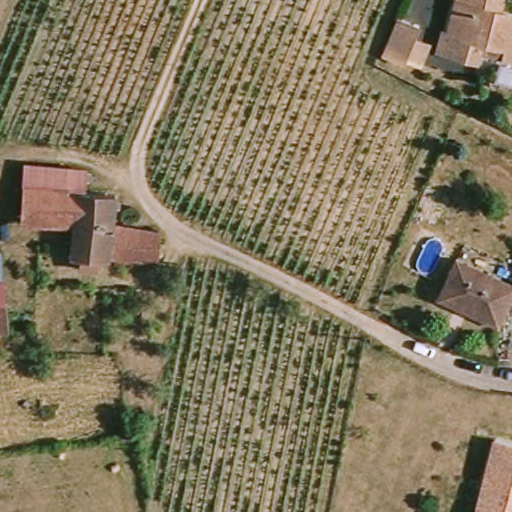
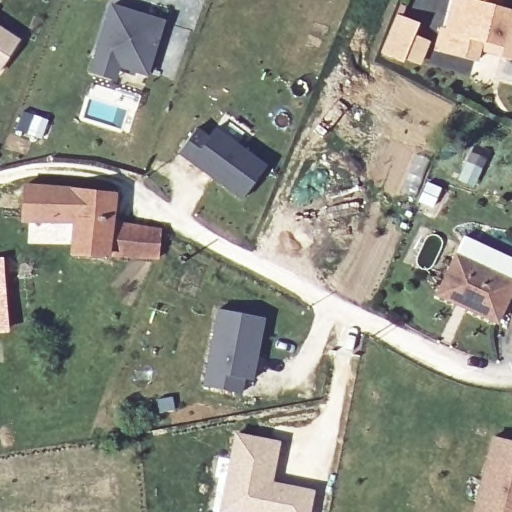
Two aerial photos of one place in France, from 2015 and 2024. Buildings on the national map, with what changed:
unchanged [(461,53),(450,50),(453,25),(459,22),(464,0),(512,0),(512,56),(496,54),(493,63),(461,53)]
new [(112,4),(164,20),(147,72),(120,64),(116,78),(92,71),(96,57),(112,4)]
unchanged [(426,31),(411,69),(390,60),(396,45),(402,22),(418,27),(426,31)]
new [(21,38),(0,69),(0,24),(21,38)]
new [(194,128),(206,137),(213,128),(265,166),(241,199),(177,152),(194,128)]
demolished [(100,166),(97,191),(36,185),(38,162),(100,166)]
unchanged [(33,218),(36,185),(97,191),(125,194),(124,227),(168,230),(166,256),(82,252),(83,222),(33,218)]
demolished [(53,271),(27,270),(28,230),(39,232),(37,239),(43,241),(42,262),(54,262),(53,271)]
unchanged [(448,288),(468,250),(512,271),(512,308),(507,317),(448,288)]
unchanged [(4,280),(5,300),(0,300),(0,280),(4,280)]
new [(218,309),(263,317),(249,394),(204,386),(218,309)]
new [(236,435),(282,443),(273,489),(285,491),(286,486),(313,491),(309,512),(234,512),(222,510),(236,435)]
unchanged [(496,438),(512,442),(512,512),(475,512),(496,438)]

